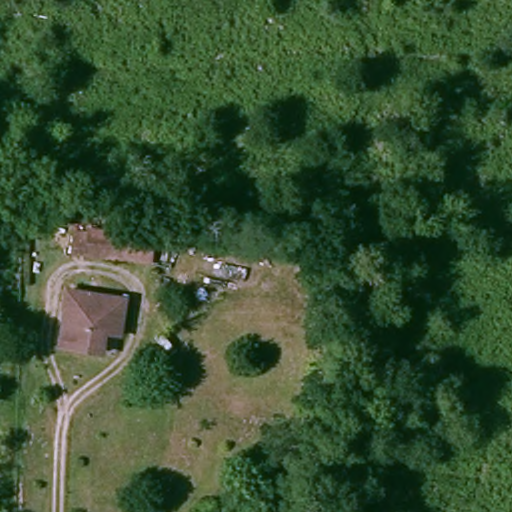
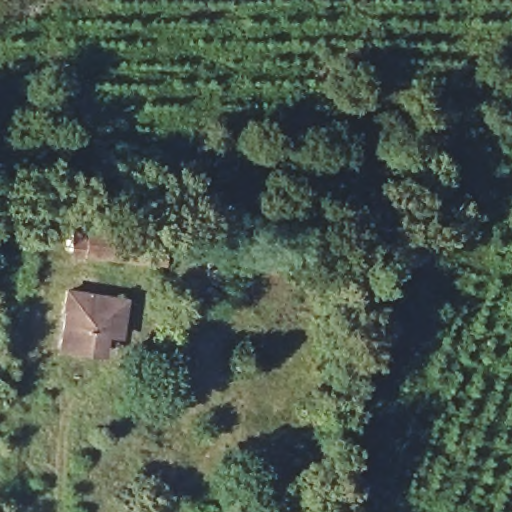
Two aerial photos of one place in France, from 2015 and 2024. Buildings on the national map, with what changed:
unchanged [(144,263),(79,255),(84,227),(147,235),(144,263)]
unchanged [(67,341),(74,290),(134,298),(129,335),(111,333),(110,347),(109,355),(66,349),(67,341)]

